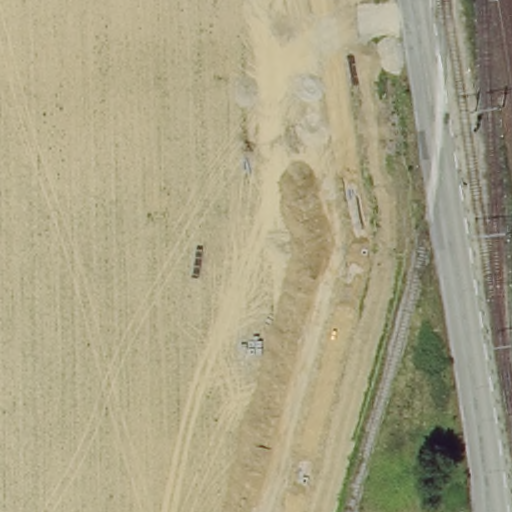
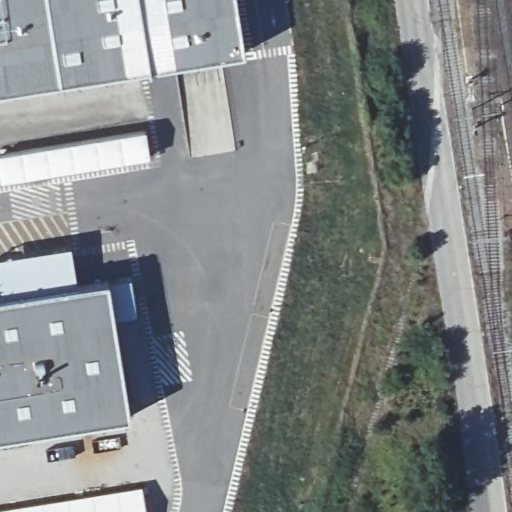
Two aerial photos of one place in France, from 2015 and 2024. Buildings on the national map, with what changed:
new [(243,54),(0,93),(0,0),(235,0),(243,54)]
new [(147,131),(150,158),(2,181),(0,170),(0,155),(147,131)]
new [(5,299),(0,276),(0,261),(72,250),(78,287),(107,282),(132,281),(138,316),(113,320),(130,418),(0,439),(0,300),(5,299)]
new [(147,512),(0,512),(0,510),(143,487),(147,512)]

